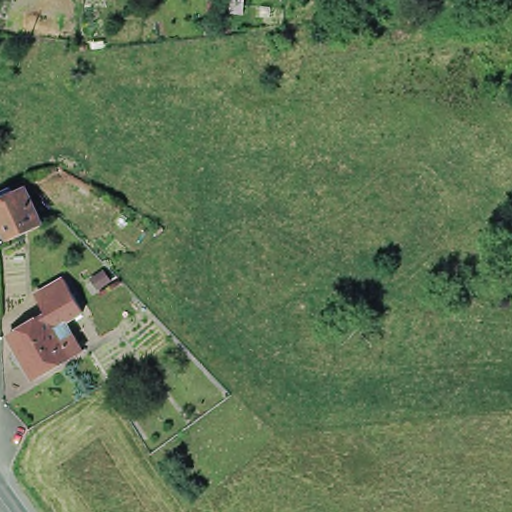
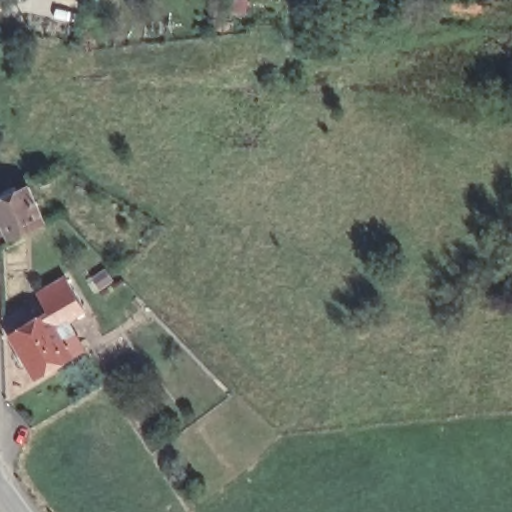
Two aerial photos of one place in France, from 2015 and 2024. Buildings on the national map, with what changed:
unchanged [(238,0),(250,0),(249,12),(237,12),(238,0)]
unchanged [(0,208),(0,193),(7,190),(7,188),(16,184),(19,190),(30,184),(47,221),(40,225),(29,230),(12,237),(0,208)]
unchanged [(45,305),(35,287),(64,270),(82,303),(65,313),(82,342),(32,371),(7,327),(45,305)]

